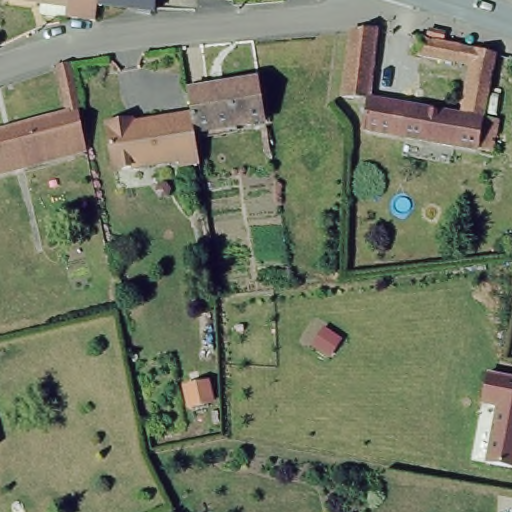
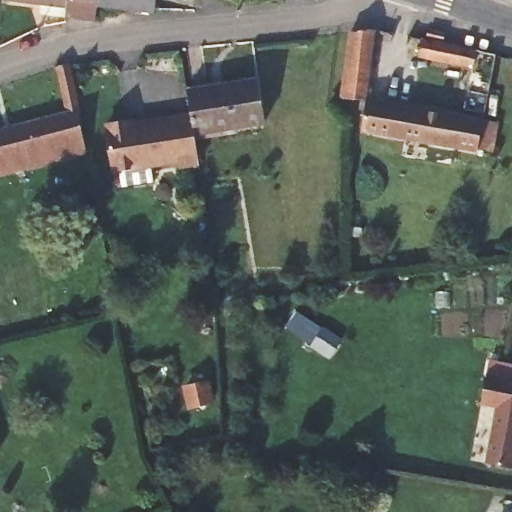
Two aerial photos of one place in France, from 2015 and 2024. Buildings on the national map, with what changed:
unchanged [(40,3),(40,0),(96,0),(95,10),(40,3)]
unchanged [(368,95),(462,111),(483,115),(477,144),(363,124),(365,105),(359,104),(361,95),(342,92),(350,26),(376,24),(368,95)]
unchanged [(444,28),(443,34),(427,30),(429,25),(444,28)]
unchanged [(462,111),(472,61),(418,49),(422,33),(476,45),(496,49),(483,115),(462,111)]
unchanged [(493,146),(477,144),(483,115),(496,49),(511,52),(493,146)]
unchanged [(68,107),(58,60),(68,57),(86,144),(0,165),(0,124),(68,107)]
unchanged [(193,91),(264,80),(271,120),(199,132),(196,115),(193,91)]
unchanged [(186,166),(185,160),(123,170),(118,165),(111,124),(136,120),(136,124),(196,115),(199,132),(203,163),(186,166)]
unchanged [(3,212),(0,213),(0,202),(3,212)]
unchanged [(497,405),(481,402),(486,375),(512,380),(512,467),(487,463),(497,405)]

